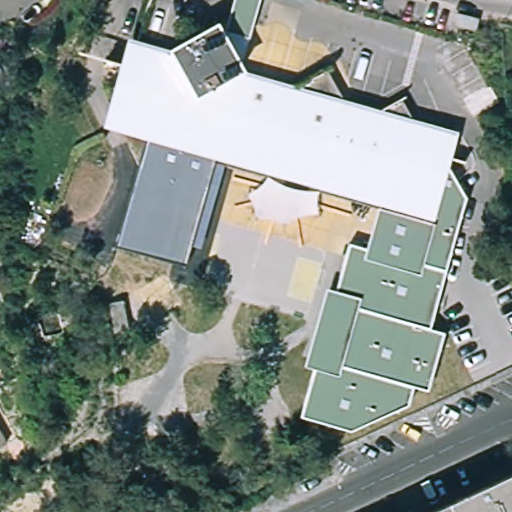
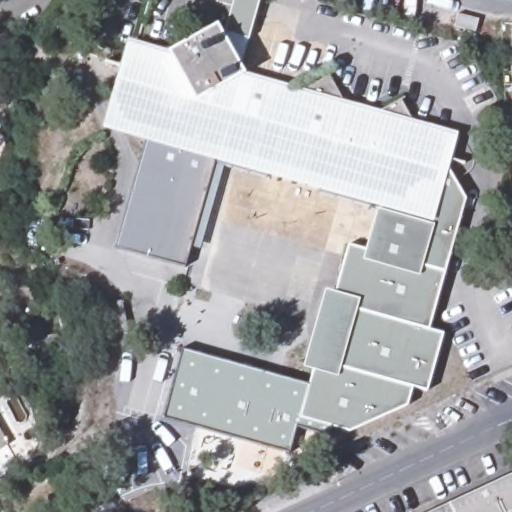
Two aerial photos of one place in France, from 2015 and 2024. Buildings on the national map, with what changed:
unchanged [(448,167),(465,197),(427,329),(442,334),(425,392),(412,390),(411,389),(406,404),(406,406),(347,431),(299,418),(314,371),(302,368),(323,287),(334,291),(348,243),(365,248),(378,207),(318,190),(267,177),(100,129),(128,38),(171,48),(216,23),(225,40),(233,0),(260,0),(240,71),(296,86),(328,70),(340,95),(343,98),(381,109),(402,98),(412,118),(459,132),(448,167)]
unchanged [(459,17),(480,23),(477,35),(455,29),(459,17)]
unchanged [(223,164),(202,250),(190,245),(185,264),(116,246),(145,145),(223,164)]
new [(309,387),(299,418),(330,426),(327,437),(294,427),(286,453),(163,418),(182,350),(309,387)]
unchanged [(5,451),(0,453),(0,443),(5,451)]
unchanged [(425,512),(512,471),(512,512),(425,512)]

